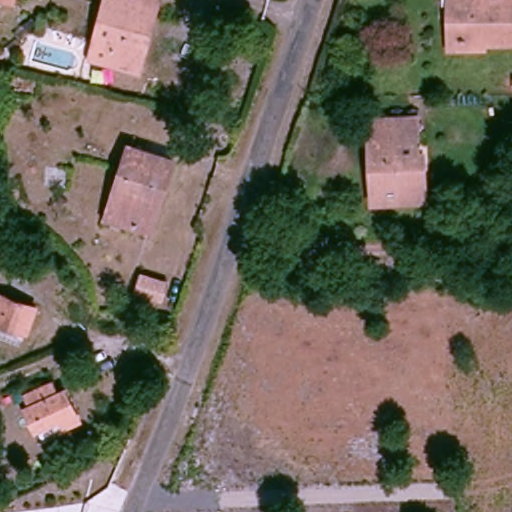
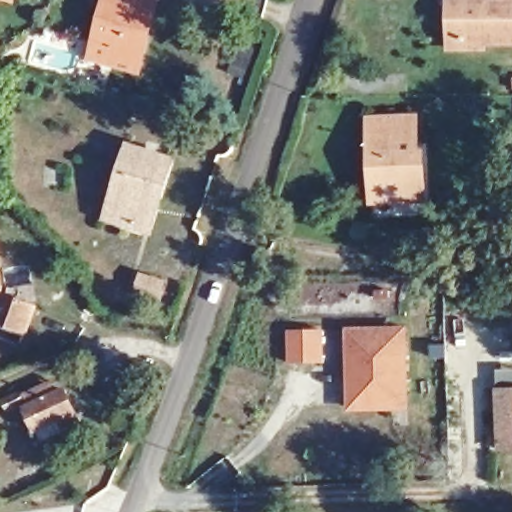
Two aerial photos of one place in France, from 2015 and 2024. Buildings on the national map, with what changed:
unchanged [(11,1),(7,0),(12,0),(11,1)]
unchanged [(140,67),(110,59),(113,47),(94,42),(105,0),(157,0),(140,67)]
unchanged [(456,45),(456,6),(444,6),(444,0),(512,0),(512,44),(456,45)]
unchanged [(423,149),(428,149),(429,174),(413,175),(413,191),(384,192),(382,153),(376,153),(375,115),(421,112),(423,149)]
unchanged [(173,154),(149,227),(109,214),(132,141),(173,154)]
new [(0,292),(0,264),(4,291),(0,292)]
unchanged [(170,278),(164,295),(141,287),(146,271),(170,278)]
unchanged [(0,295),(35,307),(26,333),(0,324),(0,295)]
new [(349,329),(407,328),(410,392),(410,406),(350,407),(350,393),(349,329)]
new [(323,330),(323,362),(292,362),(292,330),(323,330)]
unchanged [(78,417),(62,424),(59,416),(35,427),(25,403),(18,390),(41,380),(47,393),(64,386),(78,417)]
unchanged [(502,450),(500,391),(512,391),(512,450),(502,450)]

